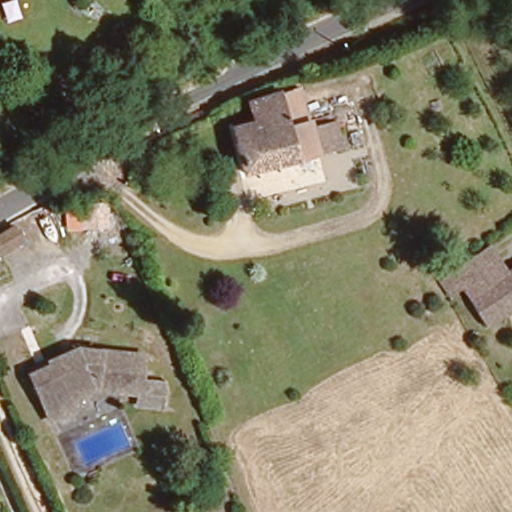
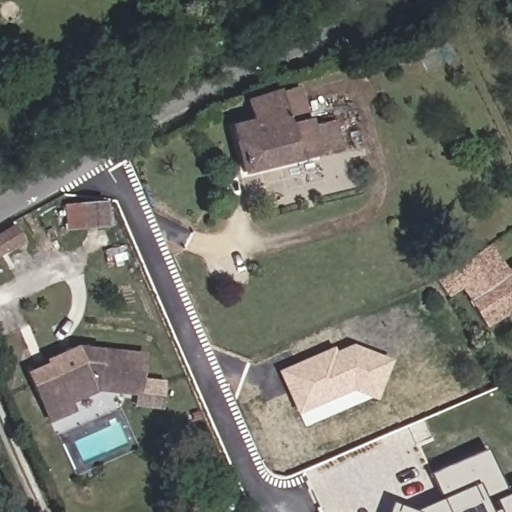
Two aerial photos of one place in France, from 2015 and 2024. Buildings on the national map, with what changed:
unchanged [(213,144),(233,137),(229,126),(252,116),(248,100),(302,81),(305,92),(300,95),(309,120),(332,115),(341,140),(245,172),(241,160),(221,166),(213,144)]
unchanged [(81,230),(78,209),(97,206),(100,227),(81,230)]
unchanged [(16,244),(0,252),(0,238),(10,233),(16,244)]
unchanged [(433,282),(442,277),(487,248),(498,266),(504,276),(512,271),(512,311),(486,327),(470,300),(464,290),(453,298),(452,295),(444,300),(433,282)]
unchanged [(47,360),(45,356),(74,340),(140,347),(135,386),(98,383),(70,396),(74,405),(69,406),(47,360)]
new [(334,352),(351,345),(390,360),(375,400),(350,391),(297,415),(277,371),(332,347),(334,352)]
unchanged [(47,417),(27,369),(47,360),(69,406),(47,417)]
new [(438,500),(429,475),(484,450),(501,489),(481,497),(488,512),(414,512),(438,500)]
new [(494,509),(492,501),(512,493),(512,512),(488,512),(494,509)]
new [(390,502),(414,512),(386,512),(390,502)]

